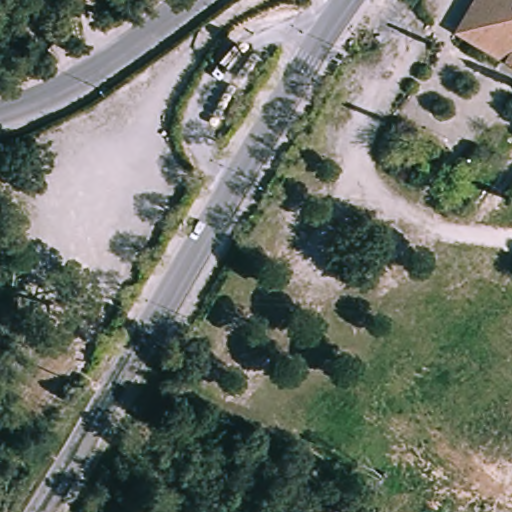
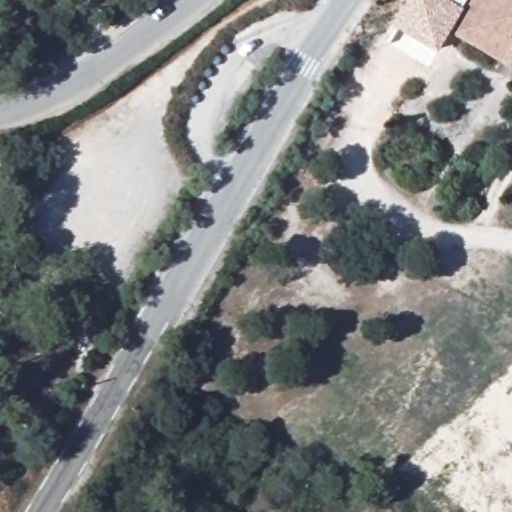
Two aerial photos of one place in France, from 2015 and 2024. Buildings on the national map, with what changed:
new [(395,26),(411,0),(476,0),(469,10),(452,34),(439,52),(395,26)]
unchanged [(452,34),(476,0),(512,0),(512,71),(499,62),(452,34)]

